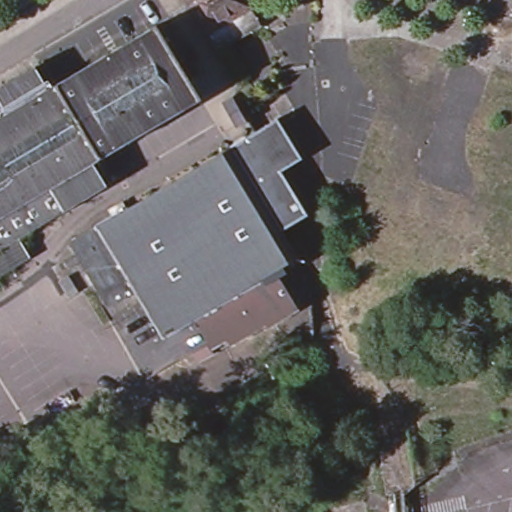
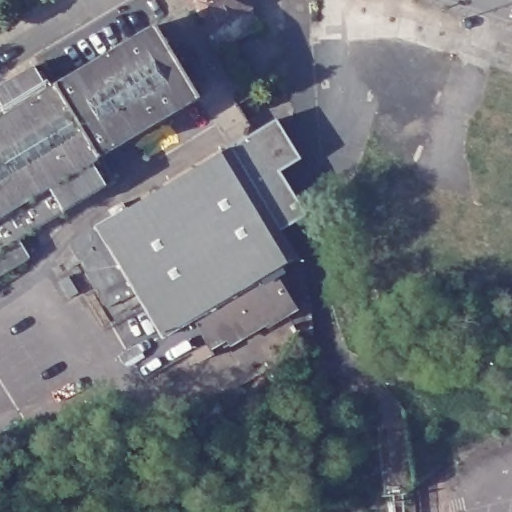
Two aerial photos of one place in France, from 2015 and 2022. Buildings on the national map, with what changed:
unchanged [(247,3),(257,20),(255,29),(215,53),(185,0),(251,0),(250,1),(247,3)]
unchanged [(57,83),(155,24),(200,99),(101,158),(57,83)]
unchanged [(15,240),(0,249),(0,86),(44,60),(57,83),(101,158),(115,181),(15,240)]
unchanged [(279,123),(299,158),(280,170),(305,217),(282,231),(297,259),(287,265),(224,153),(279,123)]
unchanged [(117,303),(131,294),(111,262),(93,233),(224,153),(287,265),(275,273),(194,323),(161,343),(140,308),(125,316),(117,303)]
unchanged [(111,262),(84,279),(65,250),(93,233),(111,262)]
unchanged [(0,273),(0,249),(15,240),(25,258),(0,273)]
unchanged [(295,312),(229,346),(226,342),(210,351),(194,323),(275,273),(295,312)]

